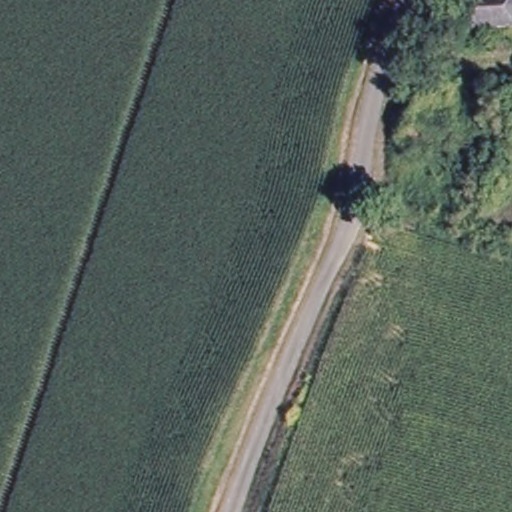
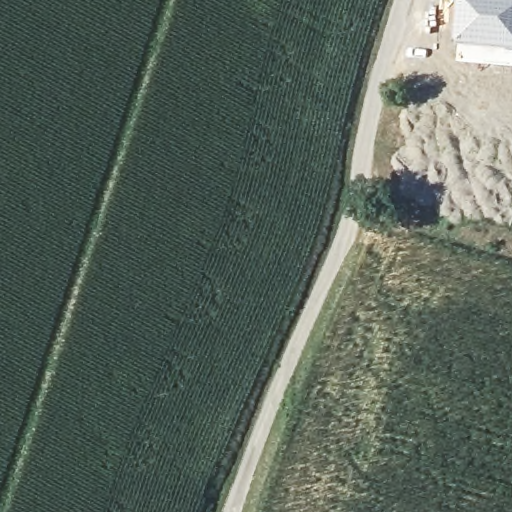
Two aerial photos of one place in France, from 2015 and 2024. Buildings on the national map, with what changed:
new [(457,0),(512,0),(512,65),(456,61),(457,0)]
demolished [(512,33),(464,35),(464,3),(512,1),(512,33)]

